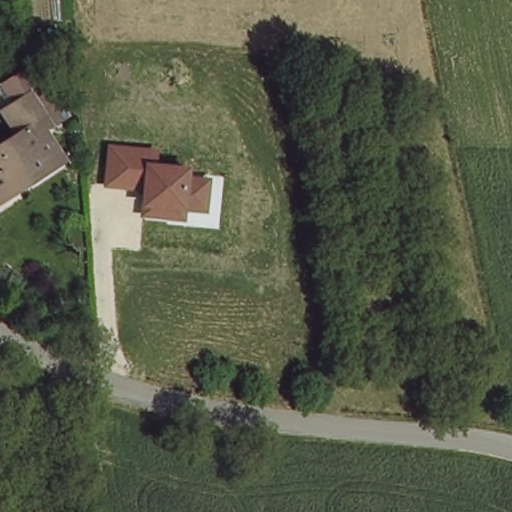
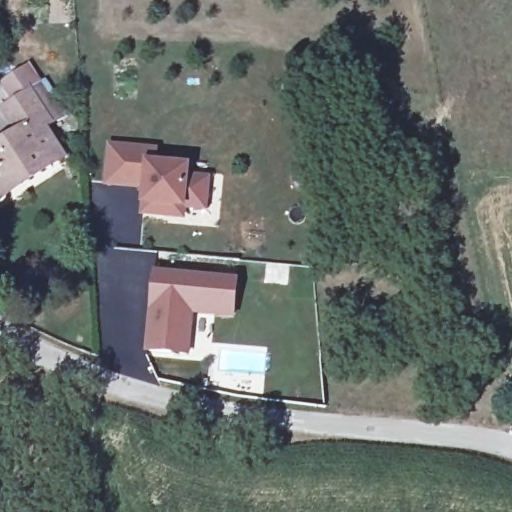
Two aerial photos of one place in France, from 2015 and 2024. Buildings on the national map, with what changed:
unchanged [(36,163),(40,170),(13,187),(9,180),(0,185),(0,139),(11,133),(0,111),(0,109),(10,104),(0,86),(0,82),(20,70),(32,90),(44,84),(62,117),(51,124),(36,133),(49,156),(36,163)]
unchanged [(0,205),(0,185),(9,180),(13,187),(40,170),(36,163),(40,161),(49,156),(36,133),(48,126),(70,160),(0,205)]
unchanged [(157,150),(156,161),(190,165),(189,176),(208,177),(204,212),(185,210),(184,220),(138,216),(140,187),(101,185),(106,145),(157,150)]
new [(156,274),(238,283),(234,318),(193,314),(188,356),(148,352),(156,274)]

